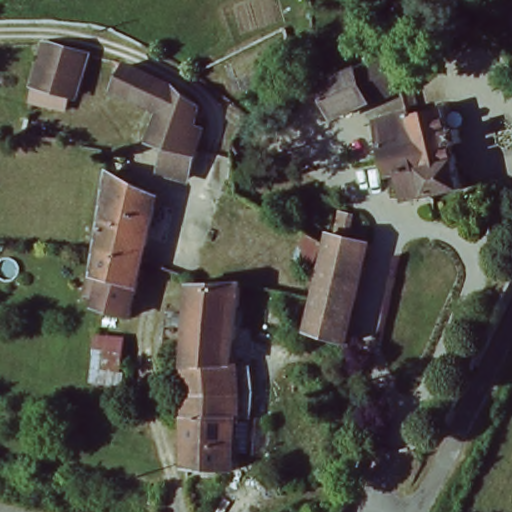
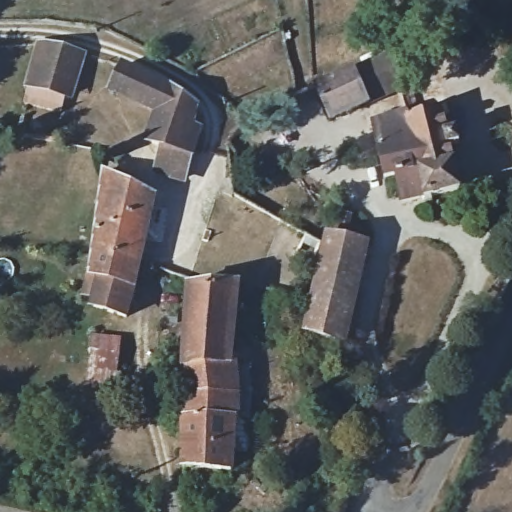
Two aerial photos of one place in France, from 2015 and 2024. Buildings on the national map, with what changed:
unchanged [(70,96),(29,86),(41,46),(43,46),(81,55),(70,96)]
unchanged [(317,82),(357,66),(393,51),(410,86),(373,101),(336,121),(317,82)]
unchanged [(156,111),(110,90),(124,58),(202,99),(198,120),(207,122),(188,183),(156,174),(162,150),(145,140),(156,111)]
unchanged [(299,109),(272,120),(263,99),(290,87),(299,109)]
unchanged [(445,105),(450,120),(459,117),(464,137),(455,140),(465,182),(428,193),(426,185),(405,190),(400,168),(388,170),(378,124),(445,105)]
unchanged [(238,149),(321,196),(317,209),(323,211),(311,244),(295,238),(296,236),(298,228),(242,196),(220,183),(238,149)]
unchanged [(156,191),(141,262),(129,321),(93,310),(95,302),(83,299),(88,273),(92,273),(97,251),(107,205),(100,204),(103,173),(156,191)]
unchanged [(302,327),(296,325),(303,297),(308,280),(325,212),(328,213),(332,201),(363,211),(358,232),(362,234),(337,336),(302,327)]
unchanged [(182,462),(183,430),(183,425),(182,392),(182,364),(183,347),(184,323),(186,285),(232,285),(231,301),(231,316),(229,366),(232,386),(231,421),(246,422),(245,452),(230,451),(229,471),(182,470),(182,462)]
unchanged [(119,387),(89,382),(92,334),(124,339),(119,387)]

